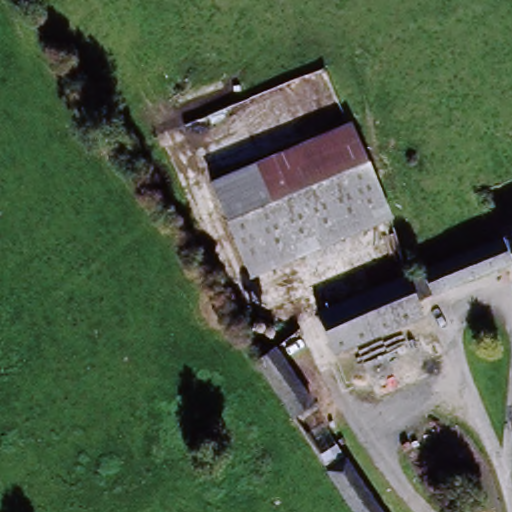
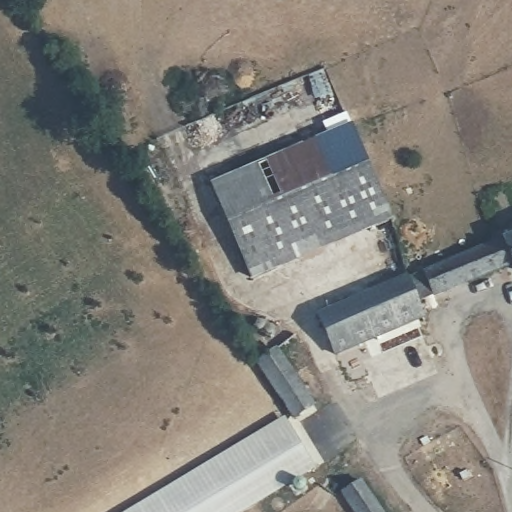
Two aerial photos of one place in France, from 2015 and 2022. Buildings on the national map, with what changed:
unchanged [(354,129),(393,227),(252,285),(213,190),(354,129)]
unchanged [(501,244),(512,239),(512,264),(420,304),(427,322),(339,358),(323,321),(412,282),(501,244)]
unchanged [(311,408),(294,420),(259,368),(279,357),(311,408)]
new [(245,512),(125,512),(283,416),(317,469),(245,512)]
unchanged [(379,512),(354,512),(330,475),(348,463),(379,512)]

